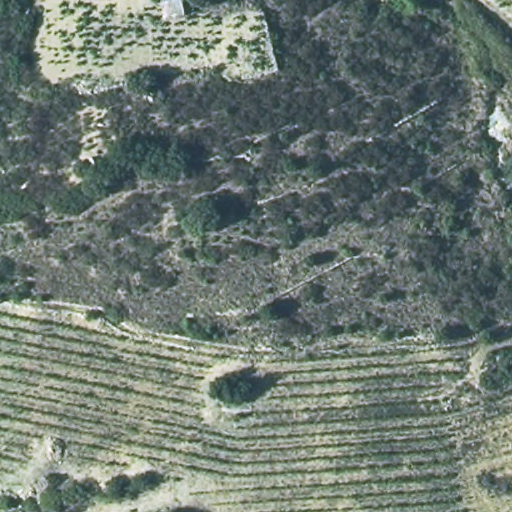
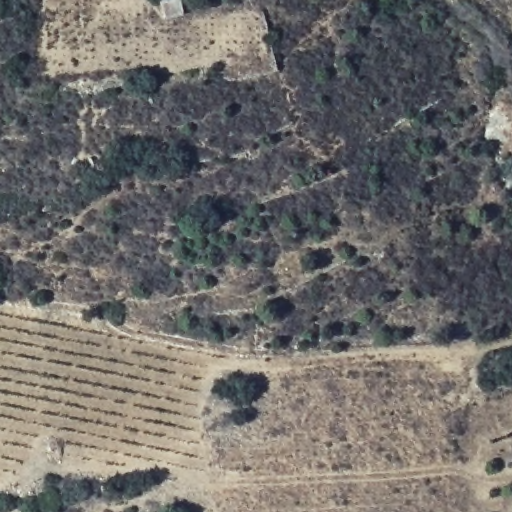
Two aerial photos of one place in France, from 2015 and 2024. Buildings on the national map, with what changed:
unchanged [(163,16),(160,0),(187,0),(189,11),(163,16)]

